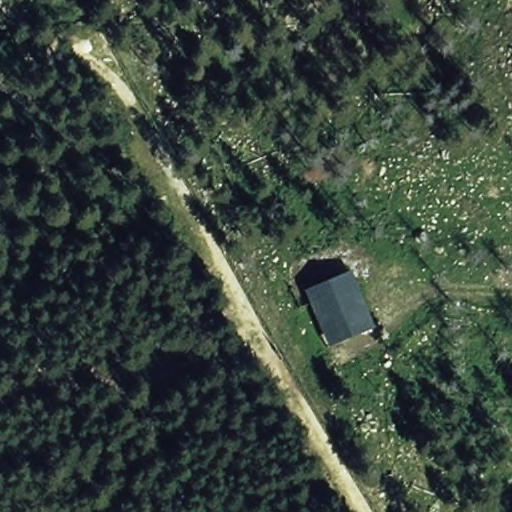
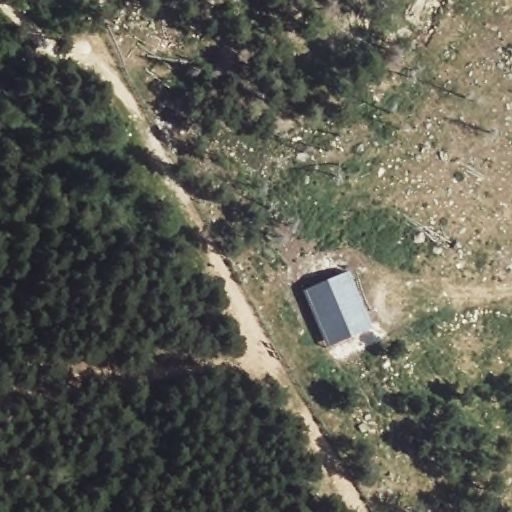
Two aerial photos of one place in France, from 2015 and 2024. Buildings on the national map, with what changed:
unchanged [(302,289),(352,267),(378,328),(328,350),(302,289)]

